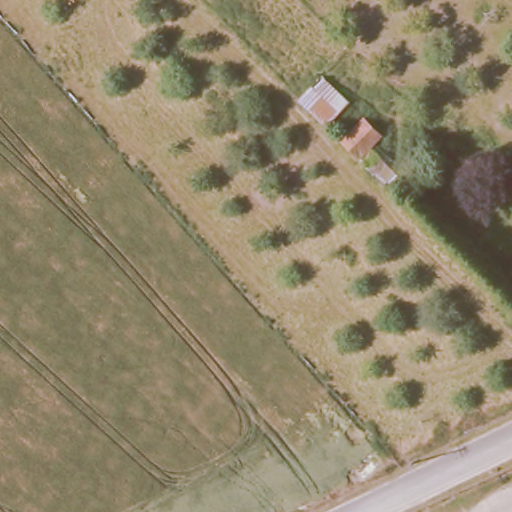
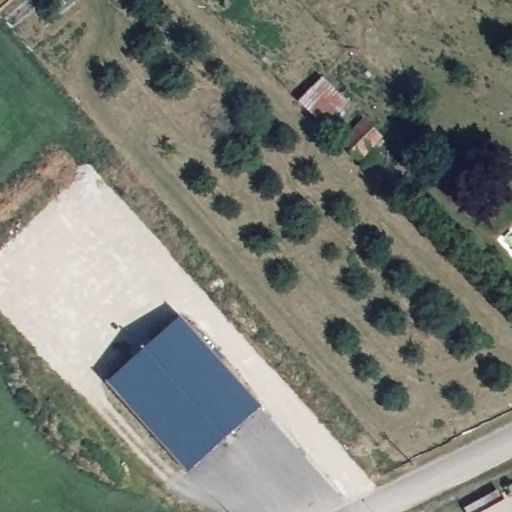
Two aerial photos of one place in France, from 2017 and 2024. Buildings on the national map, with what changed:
unchanged [(352,106),(328,134),(299,101),(324,78),(352,106)]
unchanged [(342,146),(364,123),(382,139),(372,150),(411,193),(401,204),(342,146)]
new [(261,406),(187,473),(107,383),(181,317),(261,406)]

